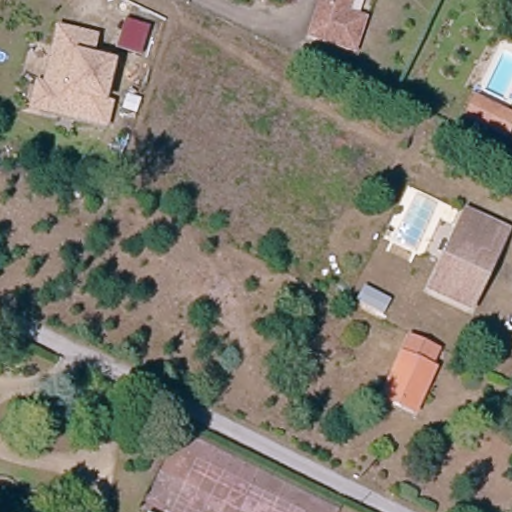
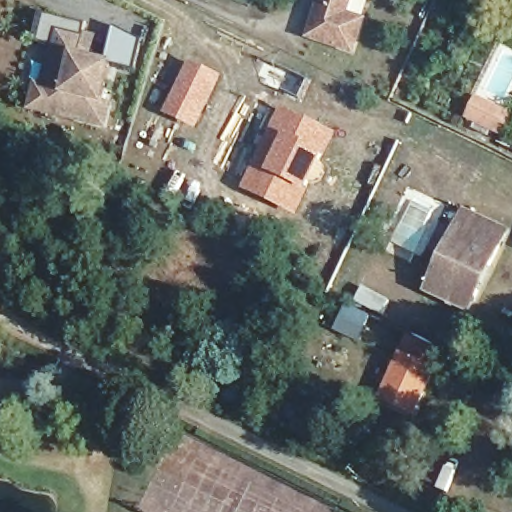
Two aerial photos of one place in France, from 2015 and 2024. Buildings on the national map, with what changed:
unchanged [(350,15),(364,21),(352,51),(311,35),(324,0),(356,0),(350,15)]
new [(126,17),(150,24),(145,38),(141,53),(117,46),(121,31),(126,17)]
unchanged [(107,128),(28,110),(35,81),(43,82),(55,24),(99,33),(94,55),(115,59),(107,99),(114,101),(107,128)]
new [(190,60),(221,76),(195,131),(161,114),(190,60)]
unchanged [(512,109),(512,135),(510,140),(464,119),(478,92),(512,109)]
new [(281,107),(336,133),(310,185),(295,177),(291,182),(250,166),(281,107)]
new [(250,166),(291,182),(295,177),(310,185),(295,217),(240,189),(250,166)]
unchanged [(423,291),(452,230),(460,214),(501,232),(493,249),(465,310),(423,291)]
new [(366,282),(392,296),(384,311),(358,297),(366,282)]
unchanged [(397,405),(380,400),(407,337),(427,347),(430,348),(422,365),(427,367),(411,402),(408,409),(397,405)]

